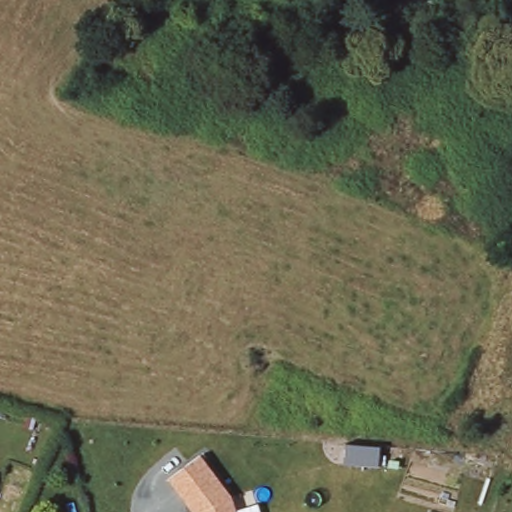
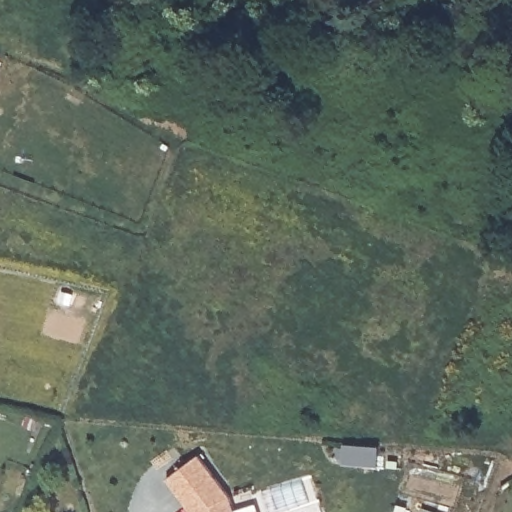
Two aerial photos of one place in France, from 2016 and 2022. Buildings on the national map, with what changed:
unchanged [(355,0),(401,0),(397,13),(355,0)]
unchanged [(168,479),(198,456),(232,497),(236,512),(192,512),(168,479)]

